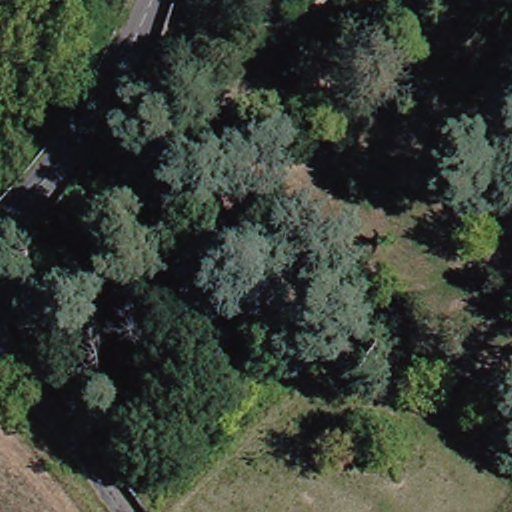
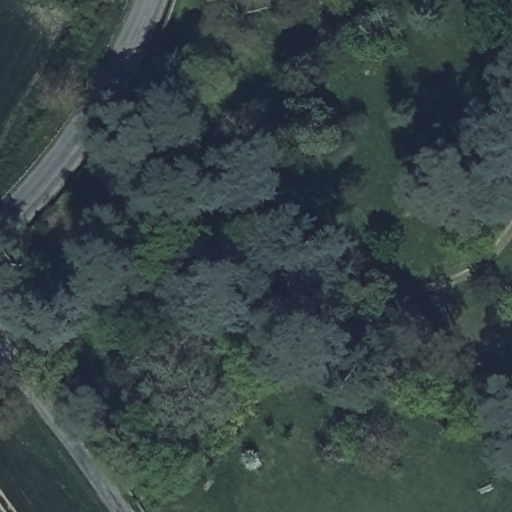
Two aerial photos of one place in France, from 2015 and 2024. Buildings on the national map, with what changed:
unchanged [(165,207),(170,226),(156,230),(150,210),(165,207)]
unchanged [(252,306),(258,317),(247,322),(242,311),(252,306)]
unchanged [(264,323),(272,336),(259,343),(251,330),(264,323)]

